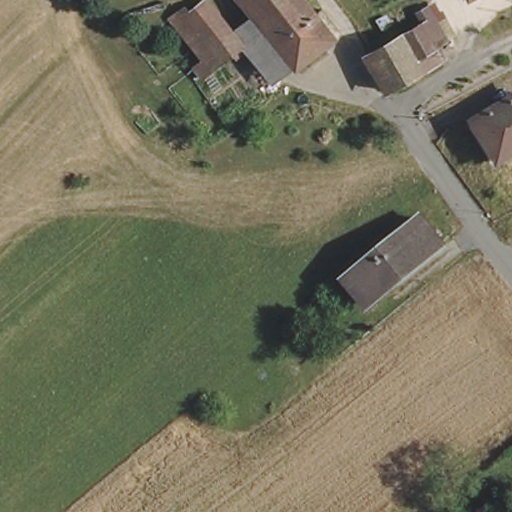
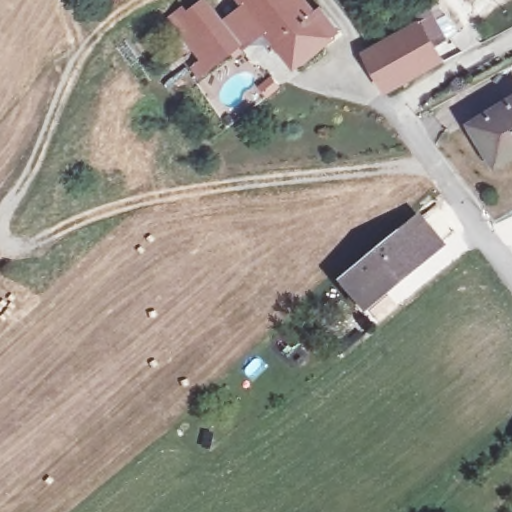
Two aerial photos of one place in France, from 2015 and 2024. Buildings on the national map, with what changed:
unchanged [(258,16),(243,0),(306,0),(320,16),(327,10),(345,31),(303,66),(300,61),(258,16)]
unchanged [(248,50),(239,60),(235,55),(207,80),(200,72),(210,63),(175,20),(188,7),(194,14),(207,3),(236,35),(248,50)]
unchanged [(276,82),(248,50),(236,35),(258,16),(300,61),(276,82)]
unchanged [(385,91),(365,60),(421,28),(432,21),(445,40),(433,47),(441,59),(385,91)]
unchanged [(475,120),(512,101),(512,155),(497,162),(475,120)]
unchanged [(386,279),(358,302),(338,278),(412,217),(435,245),(390,284),(386,279)]

